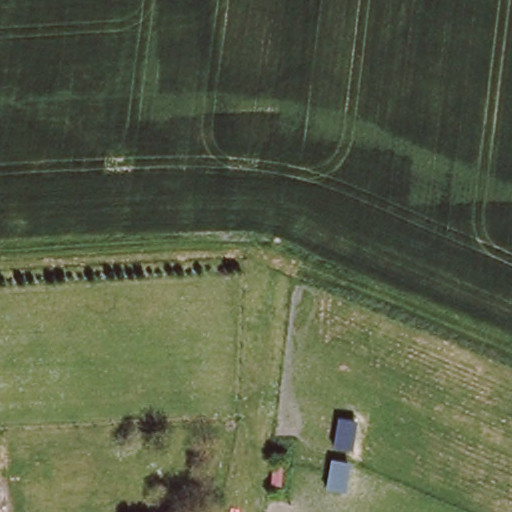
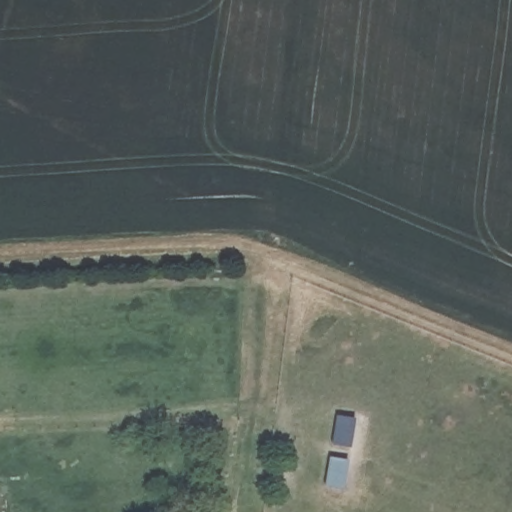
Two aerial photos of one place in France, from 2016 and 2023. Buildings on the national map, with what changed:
unchanged [(358,421),(353,448),(338,447),(341,417),(358,421)]
unchanged [(349,459),(346,487),(332,482),(334,459),(349,459)]

